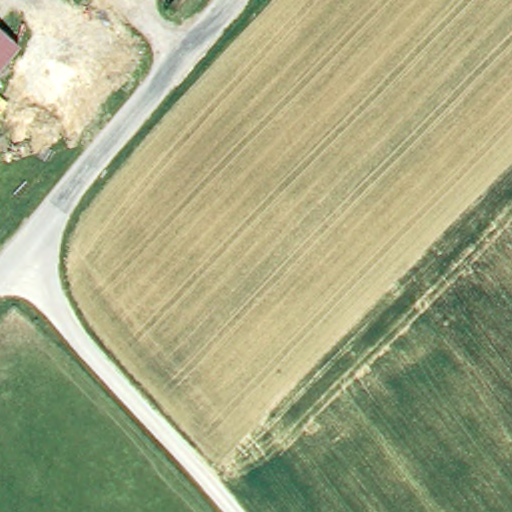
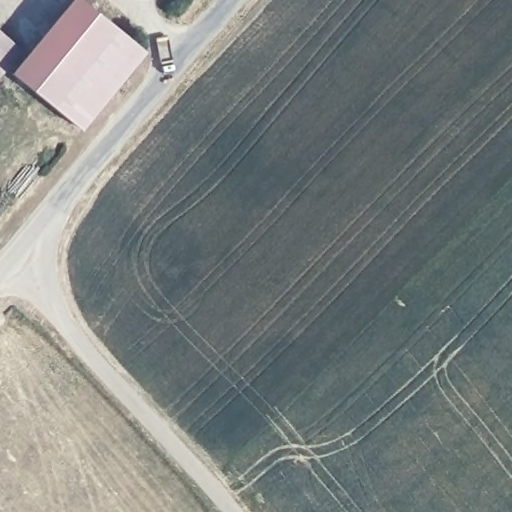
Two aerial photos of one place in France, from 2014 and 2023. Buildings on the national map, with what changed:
new [(65,0),(80,0),(142,50),(78,129),(7,70),(65,0)]
unchanged [(22,47),(0,73),(0,28),(22,47)]

